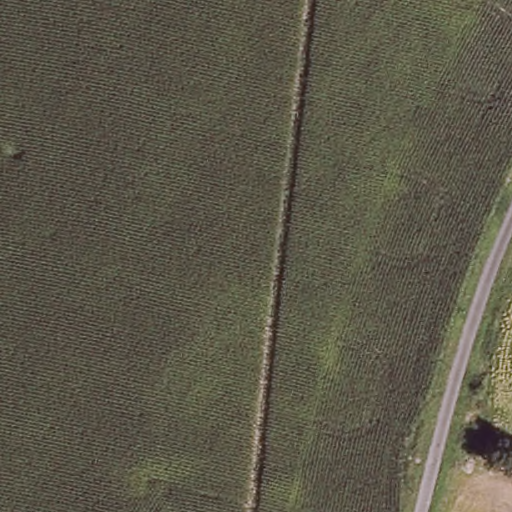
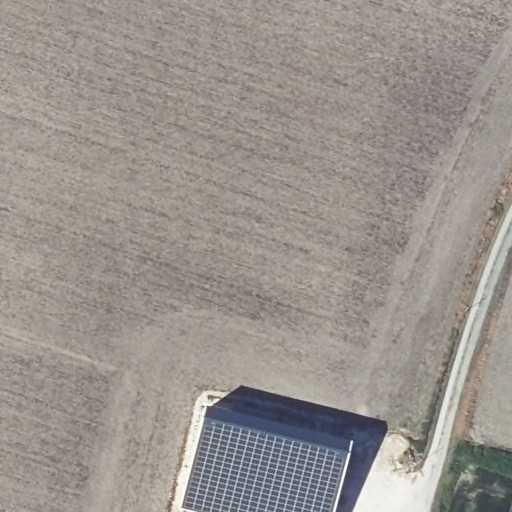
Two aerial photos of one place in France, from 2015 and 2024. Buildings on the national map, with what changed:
new [(203,406),(350,445),(334,512),(179,512),(177,512),(203,406)]

